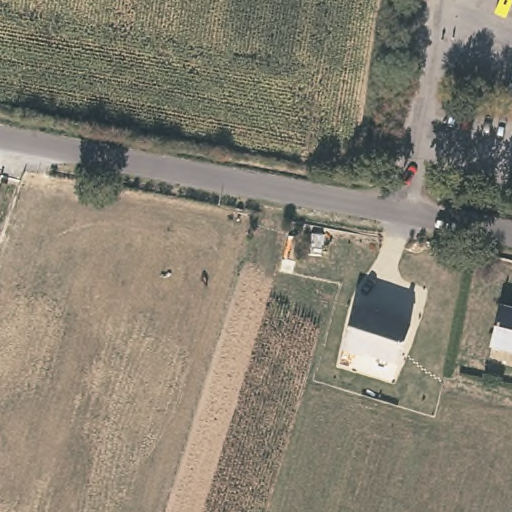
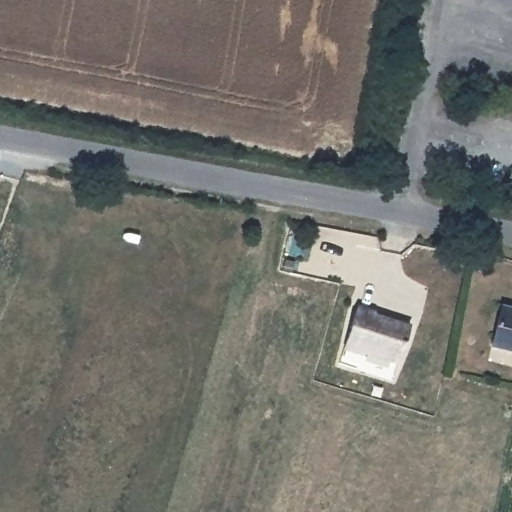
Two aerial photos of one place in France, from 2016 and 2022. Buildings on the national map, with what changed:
unchanged [(512,343),(491,337),(503,298),(512,301),(512,343)]
unchanged [(413,326),(399,365),(344,349),(358,307),(413,326)]

